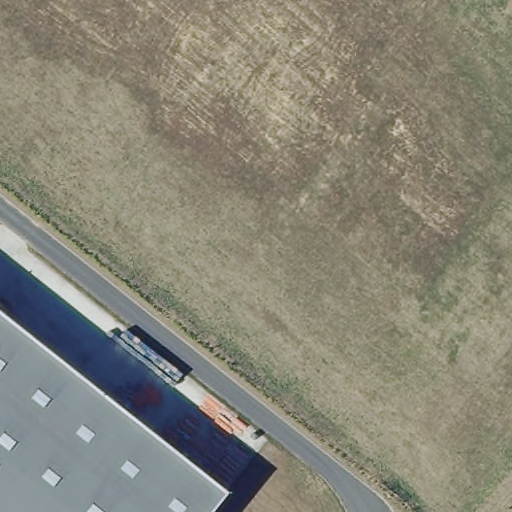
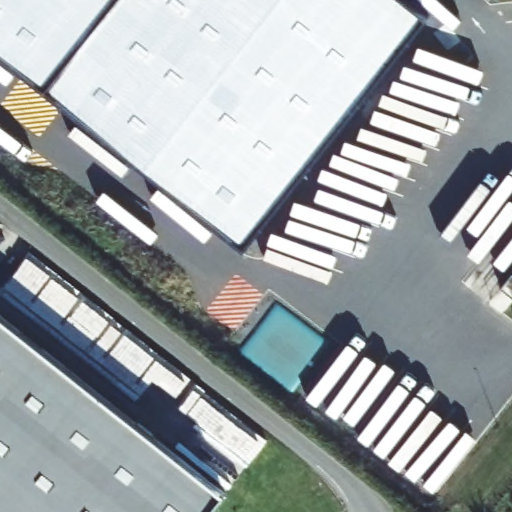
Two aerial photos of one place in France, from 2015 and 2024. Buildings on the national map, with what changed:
new [(0,55),(0,0),(402,0),(428,21),(243,250),(0,55)]
unchanged [(225,494),(210,512),(0,512),(0,316),(225,494)]

